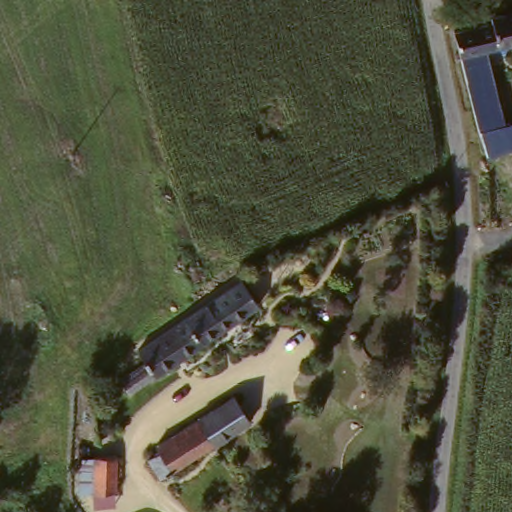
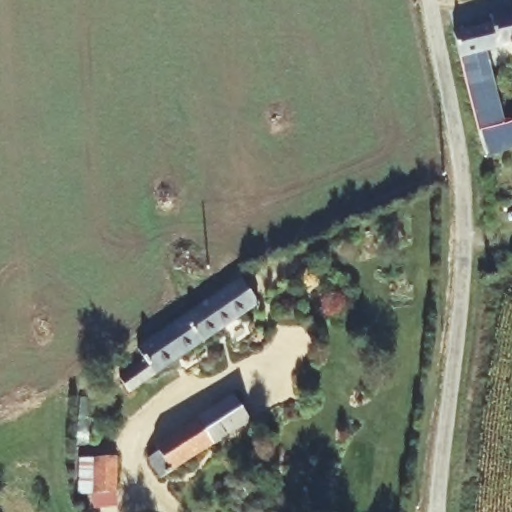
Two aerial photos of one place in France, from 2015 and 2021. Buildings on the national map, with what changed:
unchanged [(512,55),(471,66),(477,90),(483,89),(489,112),(471,122),(447,40),(512,21),(512,55)]
unchanged [(512,155),(510,148),(492,152),(489,135),(512,128),(512,155)]
unchanged [(249,285),(256,296),(265,311),(203,347),(131,390),(118,368),(115,363),(157,340),(164,335),(184,323),(249,285)]
unchanged [(231,398),(246,422),(202,451),(200,452),(164,475),(154,459),(159,455),(153,447),(231,398)]
unchanged [(103,460),(108,488),(91,491),(86,463),(103,460)]

